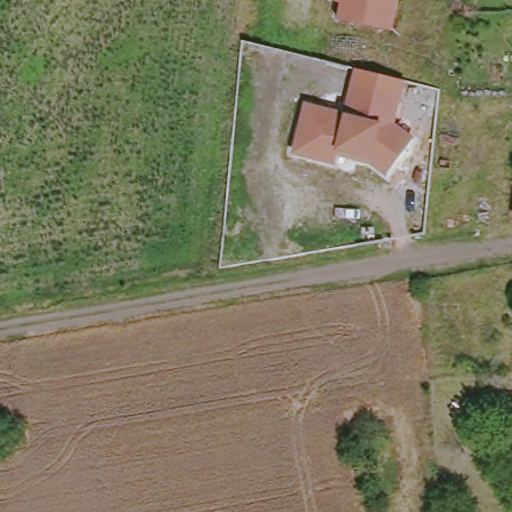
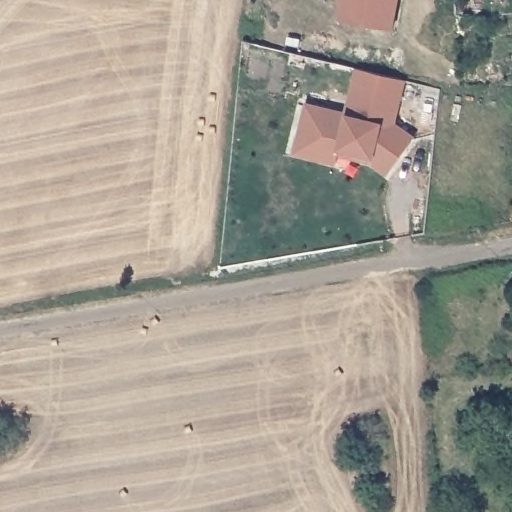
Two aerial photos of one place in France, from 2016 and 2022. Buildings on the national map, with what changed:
unchanged [(346,21),(348,0),(401,0),(397,30),(346,21)]
unchanged [(344,111),(351,83),(403,98),(397,123),(420,141),(391,177),(366,162),(338,156),(337,165),(292,154),(302,104),(344,111)]

